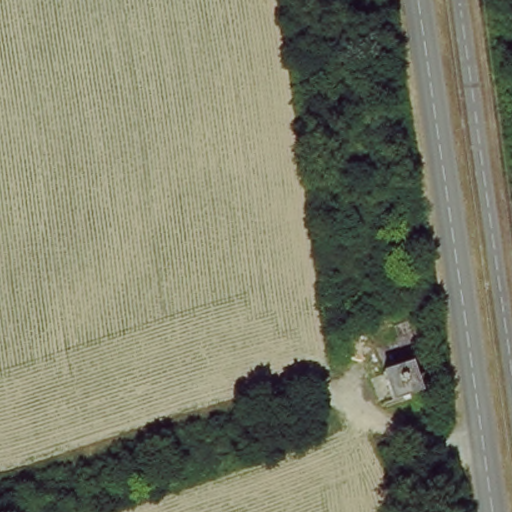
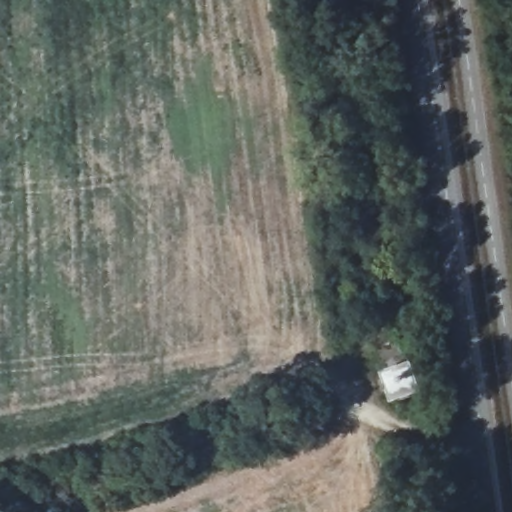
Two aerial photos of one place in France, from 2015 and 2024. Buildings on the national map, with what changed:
unchanged [(407,361),(414,383),(389,391),(381,369),(407,361)]

